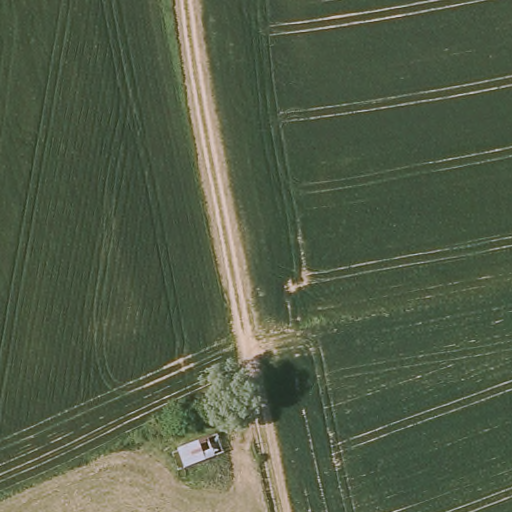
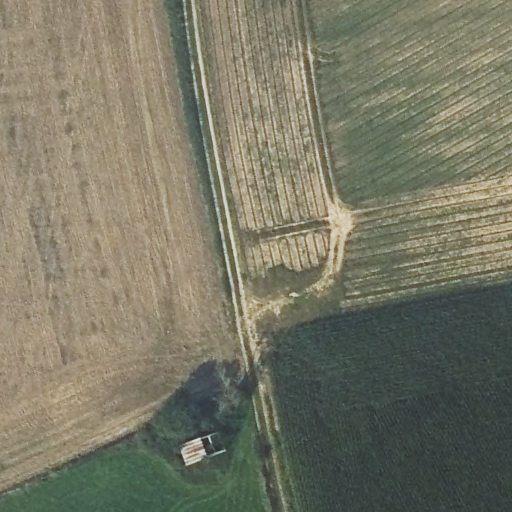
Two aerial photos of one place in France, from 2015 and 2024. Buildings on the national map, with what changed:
unchanged [(221,428),(230,450),(189,467),(180,448),(221,428)]

